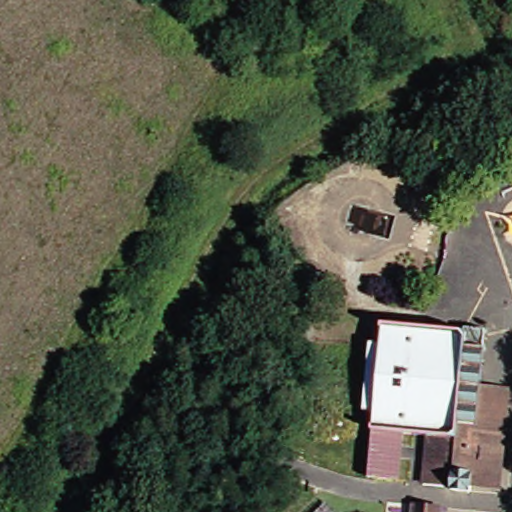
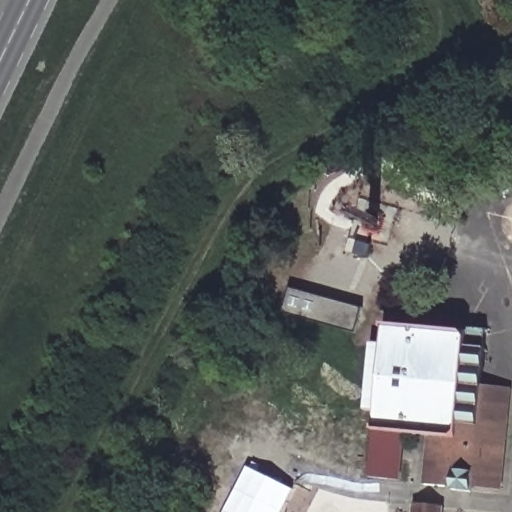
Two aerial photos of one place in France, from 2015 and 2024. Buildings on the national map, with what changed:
unchanged [(512,170),(512,186),(502,191),(496,177),(512,170)]
unchanged [(429,248),(412,243),(419,218),(436,223),(429,248)]
new [(363,309),(356,333),(283,313),(289,289),(363,309)]
unchanged [(503,490),(477,487),(476,494),(457,492),(457,486),(450,486),(449,489),(428,487),(431,457),(433,457),(435,438),(379,432),(381,414),(368,413),(375,344),(386,345),(388,327),(469,335),(472,335),(466,387),(486,389),(482,425),(501,427),(509,427),(503,490)]
unchanged [(469,335),(469,330),(491,332),(486,389),(466,387),(472,335),(469,335)]
new [(374,431),(379,432),(406,435),(401,480),(370,477),(374,431)]
new [(294,489),(283,512),(224,512),(247,466),(294,489)]
unchanged [(441,512),(414,512),(414,508),(441,511),(441,512)]

